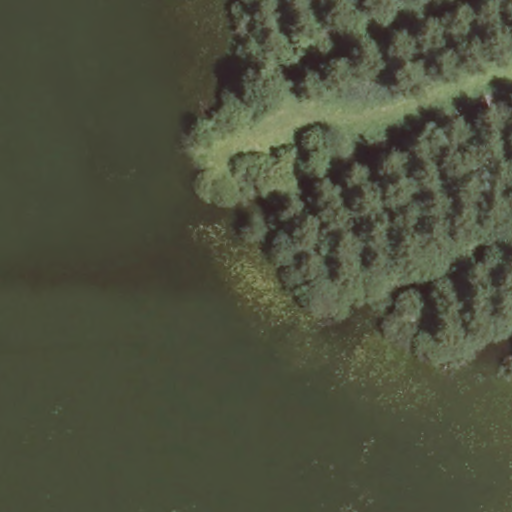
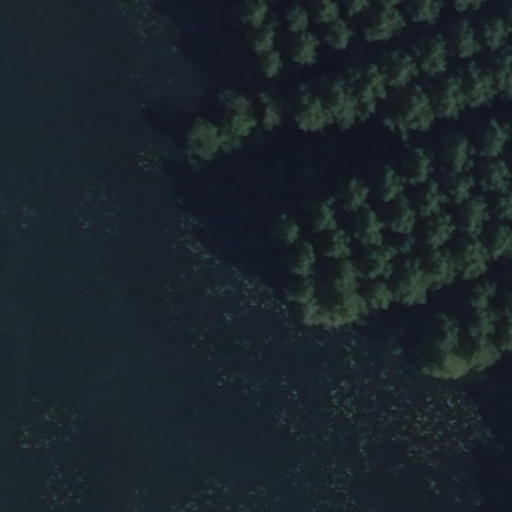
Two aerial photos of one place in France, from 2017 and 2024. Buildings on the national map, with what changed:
unchanged [(276,156),(278,174),(244,177),(240,160),(276,156)]

